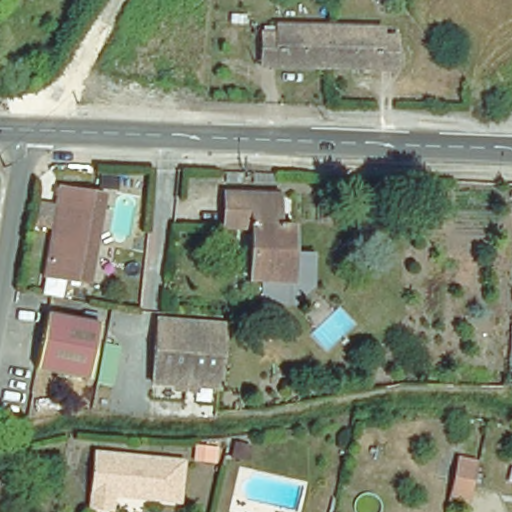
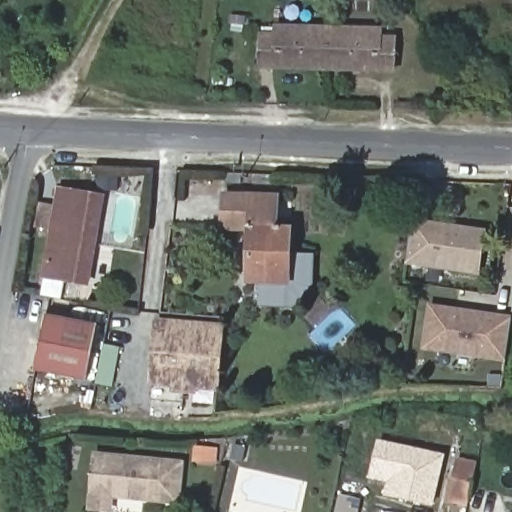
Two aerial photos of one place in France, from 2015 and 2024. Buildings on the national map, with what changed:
unchanged [(376,32),(390,32),(389,66),(256,62),(257,30),(272,30),(272,21),(376,24),(376,32)]
unchanged [(104,190),(88,278),(45,270),(53,224),(33,220),(38,195),(53,198),(56,181),(104,190)]
unchanged [(277,226),(291,227),(290,253),(312,255),(310,288),(292,305),(260,304),(260,300),(255,299),(255,286),(260,286),(260,281),(249,281),(252,230),(224,228),(225,194),(279,196),(277,226)]
new [(414,219),(485,230),(479,276),(406,264),(414,219)]
new [(512,315),(512,319),(506,362),(422,350),(429,304),(512,315)]
unchanged [(89,379),(36,368),(46,315),(99,325),(89,379)]
unchanged [(174,393),(175,384),(151,382),(157,321),(222,326),(217,388),(195,386),(195,394),(174,393)]
new [(386,449),(388,441),(446,455),(434,507),(384,496),(387,483),(369,480),(377,447),(386,449)]
unchanged [(181,502),(111,496),(115,455),(184,460),(181,502)]
unchanged [(478,467),(470,504),(451,501),(459,463),(478,467)]

